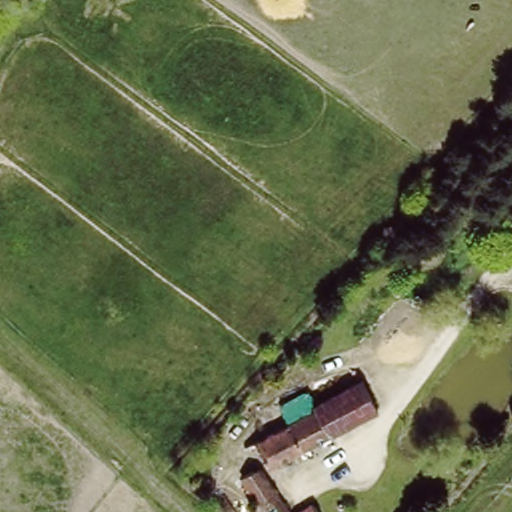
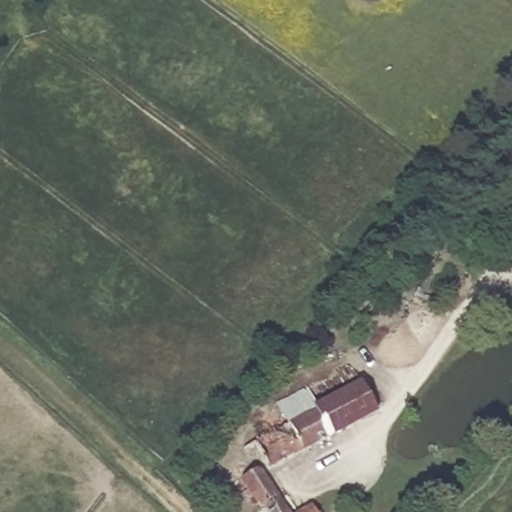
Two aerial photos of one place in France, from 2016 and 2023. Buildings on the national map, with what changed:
unchanged [(257,438),(290,417),(280,402),(307,388),(315,401),(362,375),(379,405),(273,466),(257,438)]
unchanged [(275,512),(267,501),(260,504),(240,475),(255,465),(267,467),(296,511),(313,500),(323,512),(275,512)]

